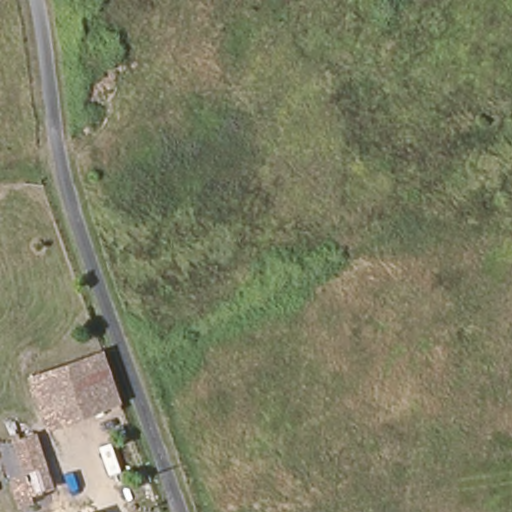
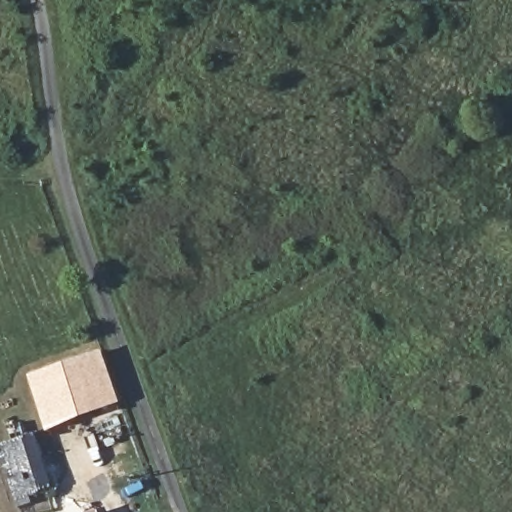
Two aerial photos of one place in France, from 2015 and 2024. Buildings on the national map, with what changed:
unchanged [(121,398),(49,421),(33,376),(102,351),(121,398)]
unchanged [(57,484),(17,496),(0,444),(14,440),(12,433),(24,429),(26,436),(40,432),(57,484)]
unchanged [(97,512),(88,512),(97,510),(97,512)]

